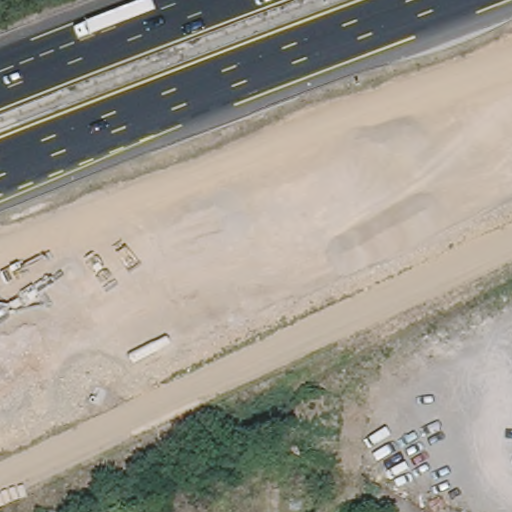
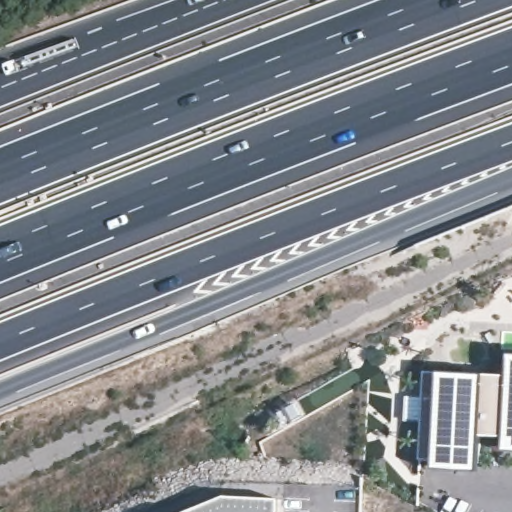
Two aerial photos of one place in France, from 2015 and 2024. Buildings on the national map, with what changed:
new [(482,465),(422,462),(425,372),(512,377),(512,439),(483,437),(482,465)]
new [(227,497),(279,501),(278,512),(190,512),(227,497)]

